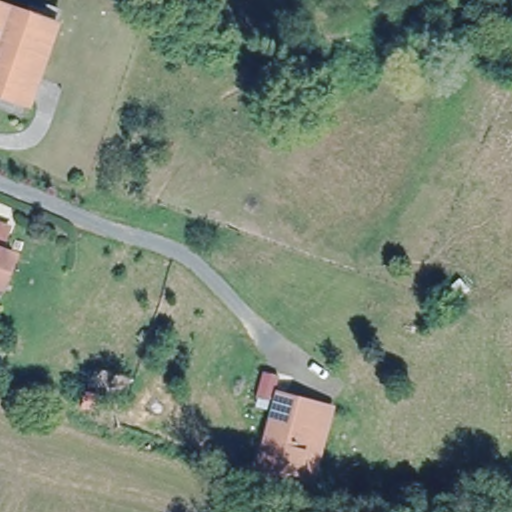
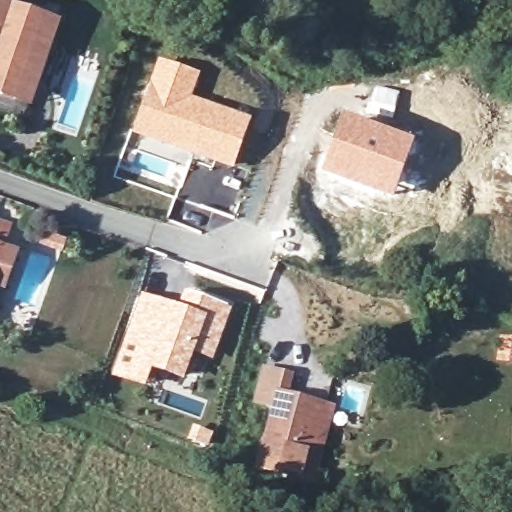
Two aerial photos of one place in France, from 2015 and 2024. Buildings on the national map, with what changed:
unchanged [(489,11),(472,26),(461,10),(476,0),(483,0),(489,11)]
unchanged [(9,6),(21,10),(47,20),(17,100),(0,94),(0,3),(9,6)]
unchanged [(47,20),(60,25),(30,105),(17,100),(47,20)]
new [(157,57),(200,73),(191,97),(251,118),(232,170),(178,151),(129,130),(157,57)]
new [(374,84),(398,90),(392,116),(366,109),(374,84)]
new [(343,114),(413,142),(392,199),(322,173),(343,114)]
unchanged [(12,224),(0,258),(0,220),(12,224)]
unchanged [(6,245),(24,250),(7,294),(0,291),(0,262),(6,245)]
new [(140,292),(179,305),(184,292),(231,310),(212,361),(194,354),(182,381),(152,370),(145,388),(110,375),(140,292)]
unchanged [(283,379),(276,403),(261,399),(268,375),(283,379)]
unchanged [(122,394),(118,416),(80,407),(84,387),(122,394)]
unchanged [(314,483),(314,484),(302,481),(262,469),(264,463),(283,397),(323,408),(335,412),(314,483)]

